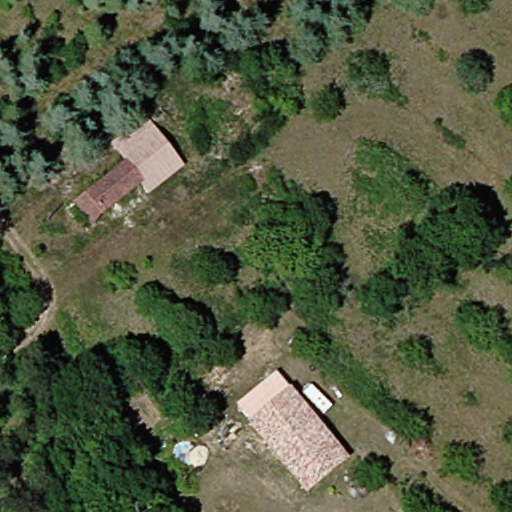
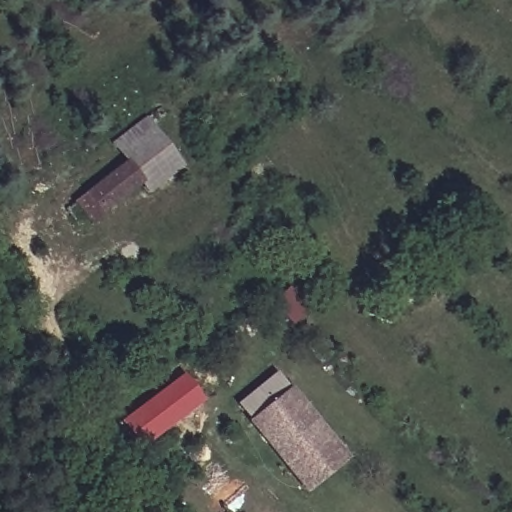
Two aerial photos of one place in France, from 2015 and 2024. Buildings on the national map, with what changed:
unchanged [(149,184),(132,162),(129,164),(112,144),(146,117),(185,167),(151,196),(144,188),(149,184)]
unchanged [(76,203),(129,164),(132,162),(149,184),(144,188),(97,225),(76,203)]
new [(139,449),(120,423),(185,373),(205,402),(139,449)]
unchanged [(289,385),(351,458),(307,496),(247,424),(289,385)]

